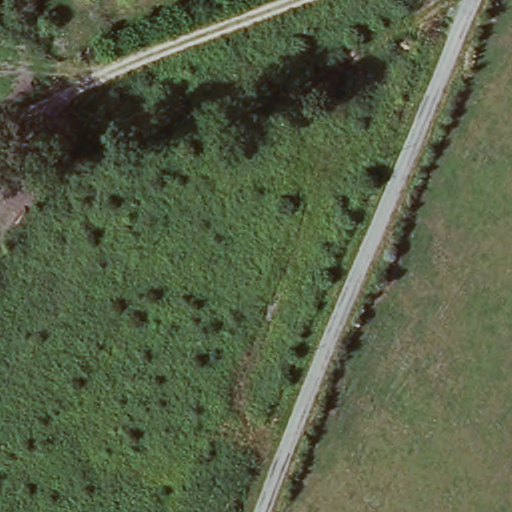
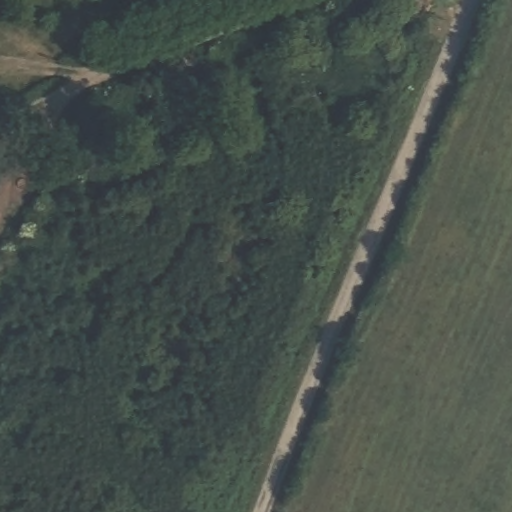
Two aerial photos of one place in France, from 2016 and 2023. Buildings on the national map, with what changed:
unchanged [(155,0),(146,4),(145,0),(155,0)]

